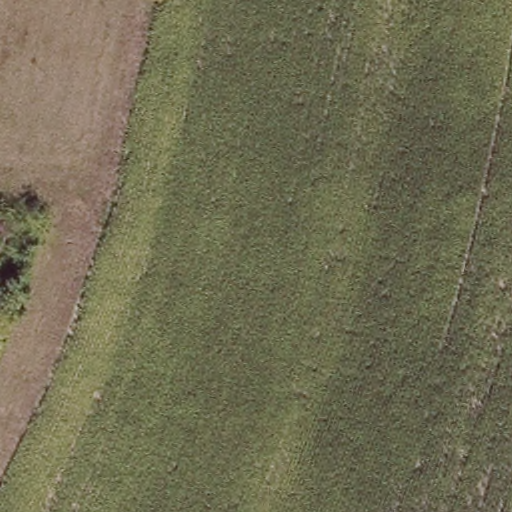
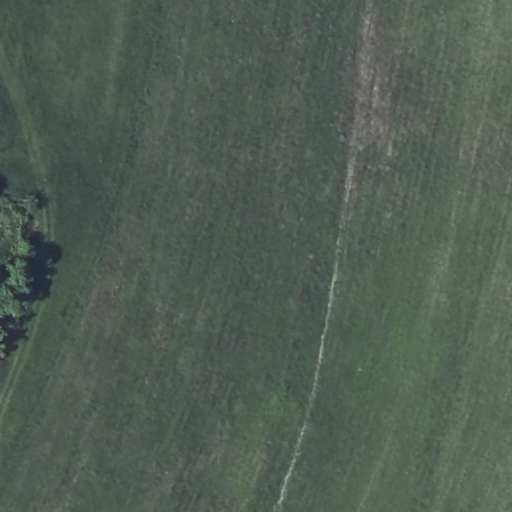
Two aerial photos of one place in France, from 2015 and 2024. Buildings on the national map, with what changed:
[]

